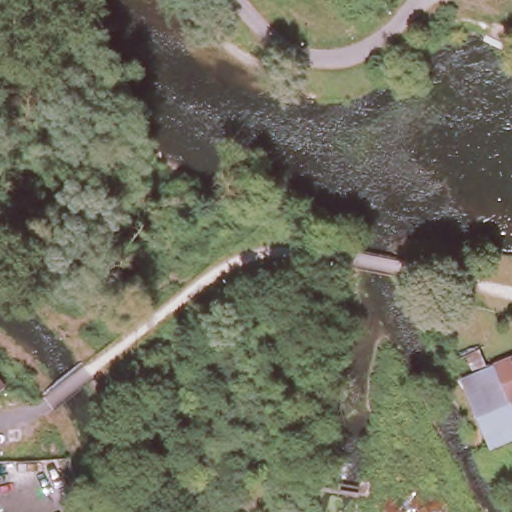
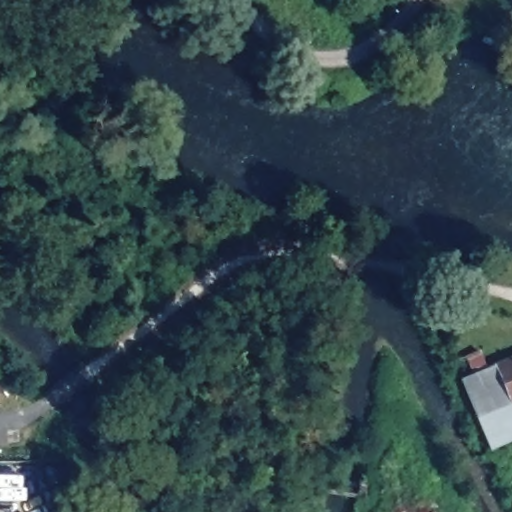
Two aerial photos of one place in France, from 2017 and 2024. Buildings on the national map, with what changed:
unchanged [(505,401),(490,363),(512,354),(512,398),(511,398),(505,401)]
unchanged [(505,401),(511,398),(512,401),(512,441),(483,452),(471,422),(452,372),(490,363),(505,401)]
unchanged [(7,387),(0,394),(0,378),(7,387)]

